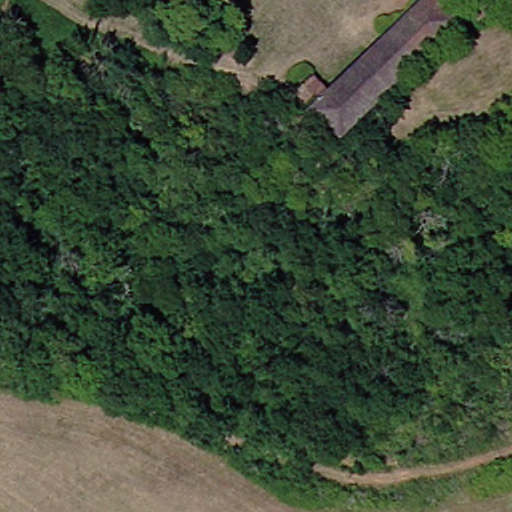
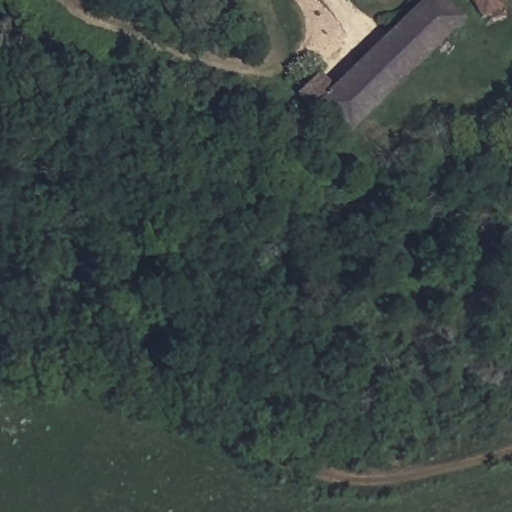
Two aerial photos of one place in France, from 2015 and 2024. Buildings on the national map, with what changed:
unchanged [(292,104),(314,81),(327,95),(423,0),(427,0),(453,25),(434,45),(336,146),(311,125),(292,104)]
unchanged [(512,12),(512,17),(492,25),(480,0),(506,0),(512,12)]

